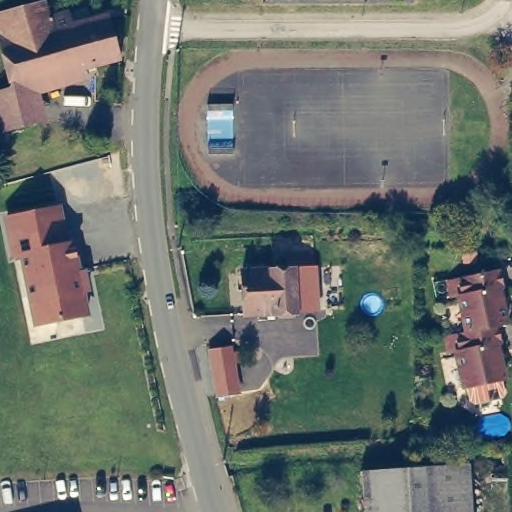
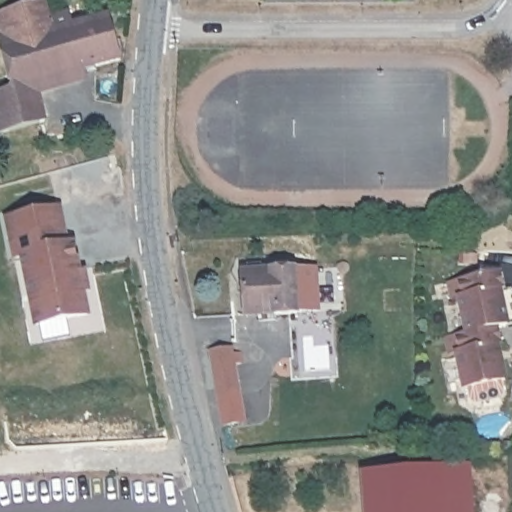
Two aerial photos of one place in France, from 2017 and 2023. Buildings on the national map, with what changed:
unchanged [(0,93),(5,91),(19,87),(6,47),(0,28),(0,17),(46,2),(51,17),(79,10),(83,22),(111,14),(122,56),(35,83),(46,120),(16,130),(17,133),(12,135),(10,132),(1,135),(0,131),(0,93)]
unchanged [(35,329),(17,258),(12,261),(2,217),(60,204),(70,241),(74,240),(82,273),(87,273),(92,292),(87,293),(91,317),(35,329)]
unchanged [(250,269),(250,263),(257,263),(258,270),(315,266),(319,308),(247,312),(245,269),(250,269)]
unchanged [(446,337),(456,335),(467,333),(459,296),(452,297),(449,282),(458,280),(499,271),(502,288),(500,288),(507,324),(497,327),(500,343),(497,345),(505,380),(464,388),(456,352),(450,353),(446,337)]
unchanged [(234,345),(242,393),(217,398),(206,350),(234,345)]
unchanged [(469,512),(362,512),(360,477),(359,477),(359,472),(467,467),(469,512)]

